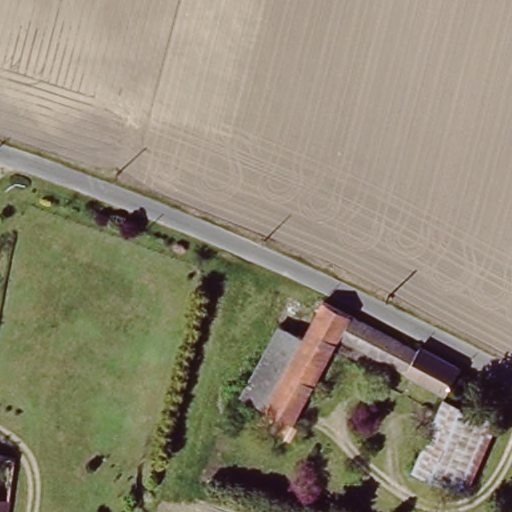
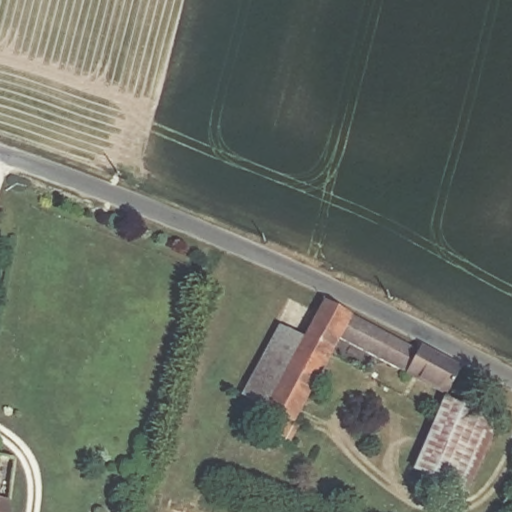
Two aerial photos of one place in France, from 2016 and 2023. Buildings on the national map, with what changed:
unchanged [(445,392),(341,337),(286,439),(255,425),(265,408),(237,392),(277,324),(302,335),(321,299),(412,346),(415,339),(460,364),(445,392)]
unchanged [(495,418),(464,489),(413,466),(445,395),(495,418)]
unchanged [(10,503),(9,512),(0,512),(0,501),(10,503)]

